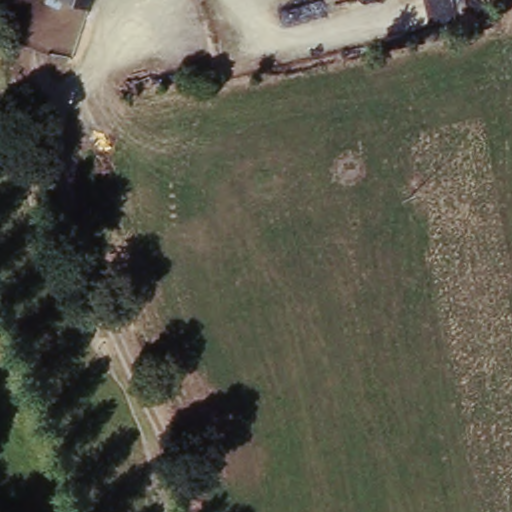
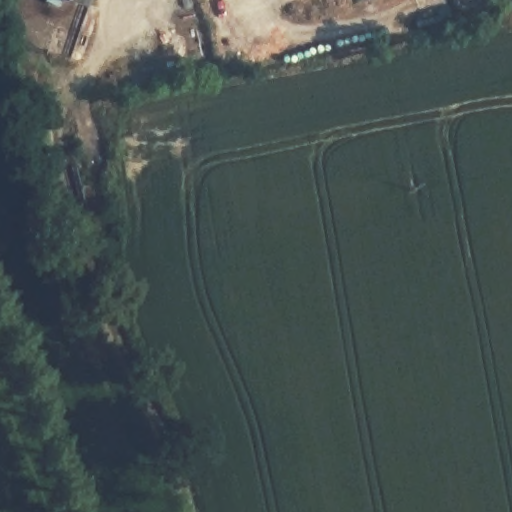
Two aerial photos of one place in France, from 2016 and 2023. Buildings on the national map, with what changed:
unchanged [(90,12),(54,0),(94,0),(90,12)]

